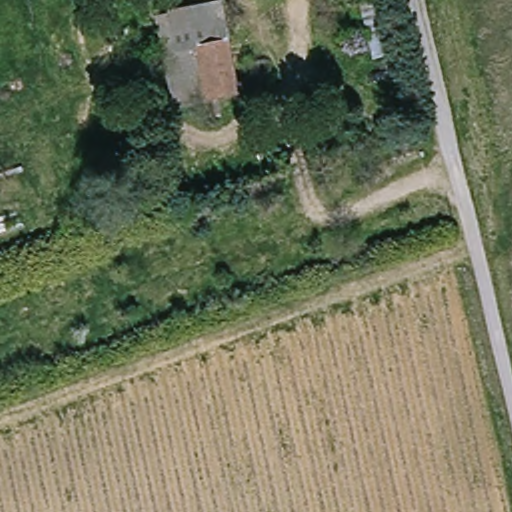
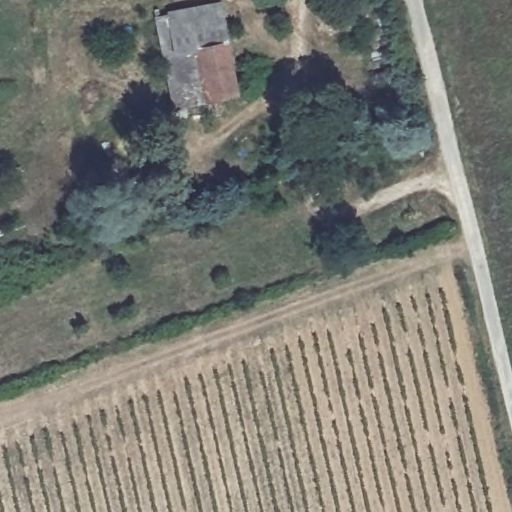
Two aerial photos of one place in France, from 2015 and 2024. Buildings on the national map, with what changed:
unchanged [(216,2),(228,46),(198,53),(187,11),(216,2)]
unchanged [(160,64),(148,21),(187,11),(198,53),(160,64)]
unchanged [(228,46),(241,95),(212,103),(198,53),(228,46)]
unchanged [(212,103),(173,113),(160,64),(198,53),(212,103)]

